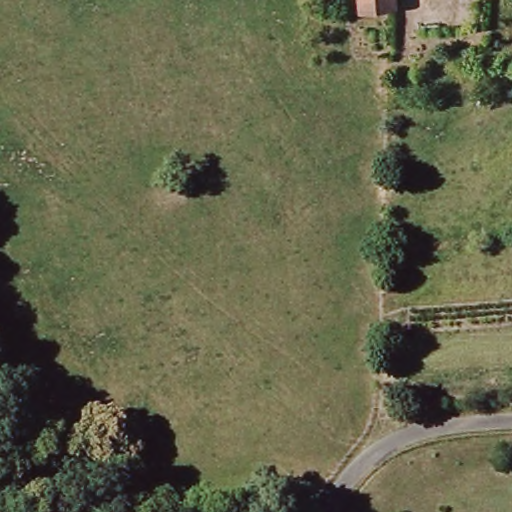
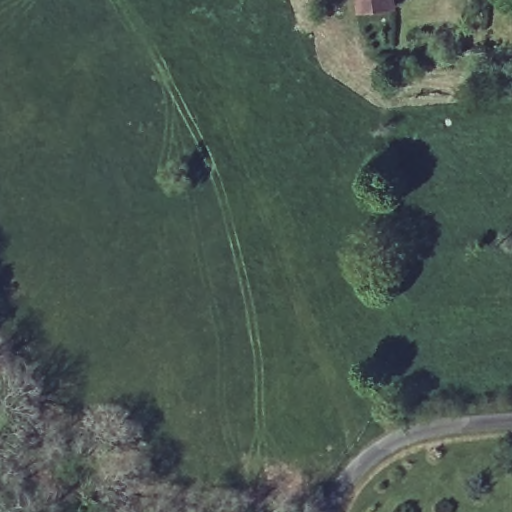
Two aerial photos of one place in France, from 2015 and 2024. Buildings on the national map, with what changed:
unchanged [(390,10),(359,14),(358,0),(389,0),(390,10)]

